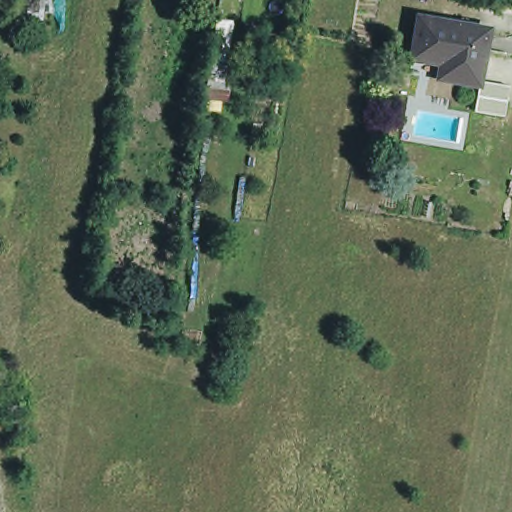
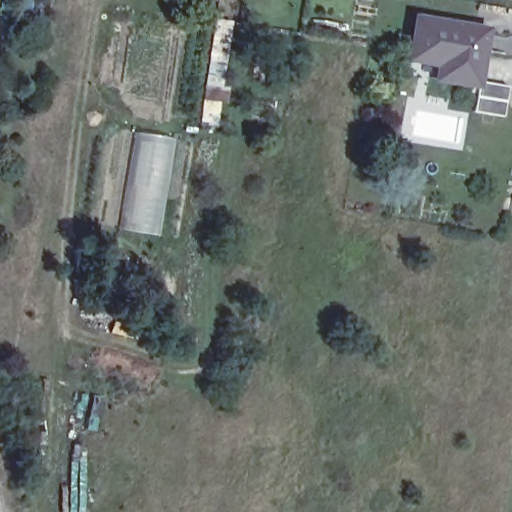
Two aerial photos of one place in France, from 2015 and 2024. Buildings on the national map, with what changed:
unchanged [(441,84),(443,69),(414,64),(421,21),(460,28),(450,86),(441,84)]
unchanged [(482,91),(450,86),(460,28),(492,34),(482,91)]
new [(164,237),(120,232),(134,134),(177,139),(164,237)]

